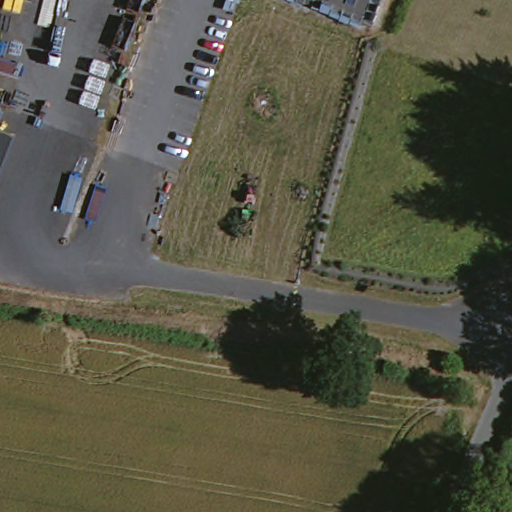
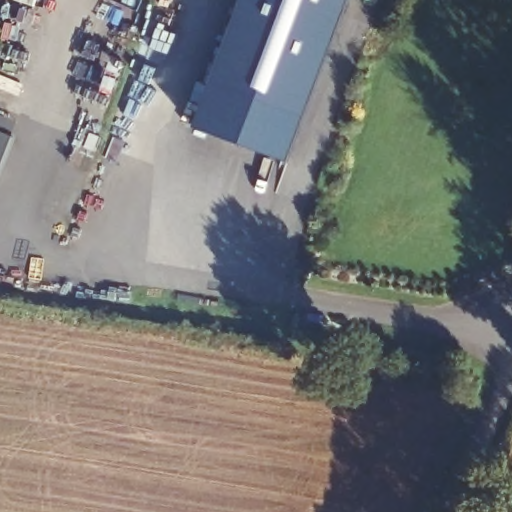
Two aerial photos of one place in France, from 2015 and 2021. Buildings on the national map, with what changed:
new [(195,128),(242,0),(350,0),(287,161),(195,128)]
unchanged [(0,188),(0,130),(20,138),(0,188)]

